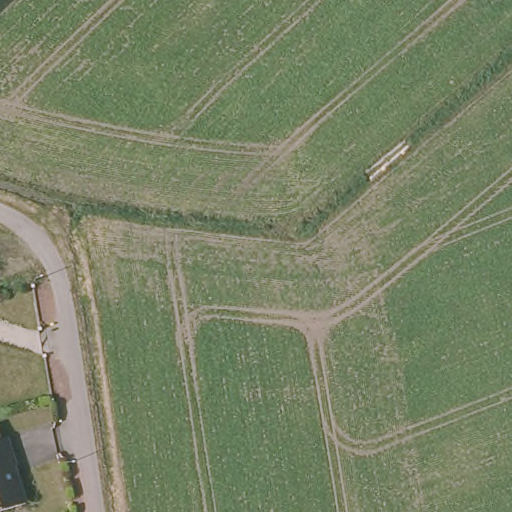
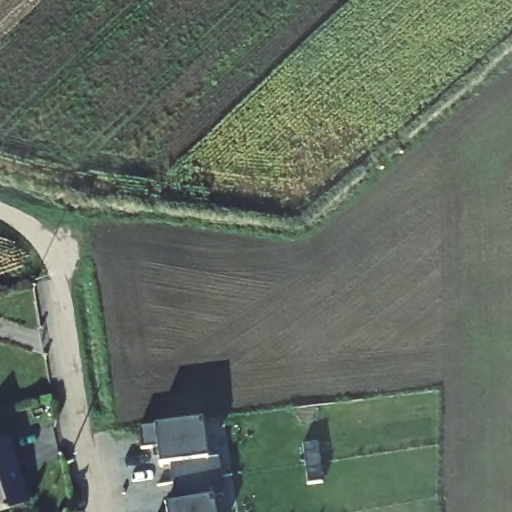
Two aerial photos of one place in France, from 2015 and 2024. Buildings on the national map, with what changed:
new [(199,420),(205,458),(214,457),(217,477),(168,484),(165,465),(155,466),(153,449),(137,451),(134,429),(199,420)]
unchanged [(0,439),(13,435),(19,452),(22,462),(19,463),(30,499),(0,508),(0,439)]
new [(304,483),(301,463),(299,444),(313,442),(316,461),(318,481),(304,483)]
new [(162,505),(171,504),(168,484),(217,477),(220,497),(210,498),(213,512),(163,512),(162,505)]

